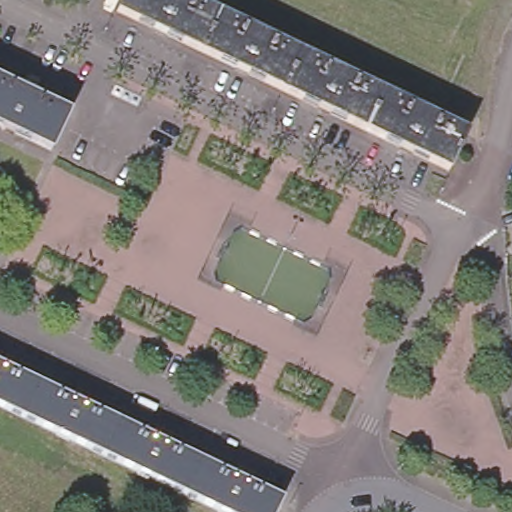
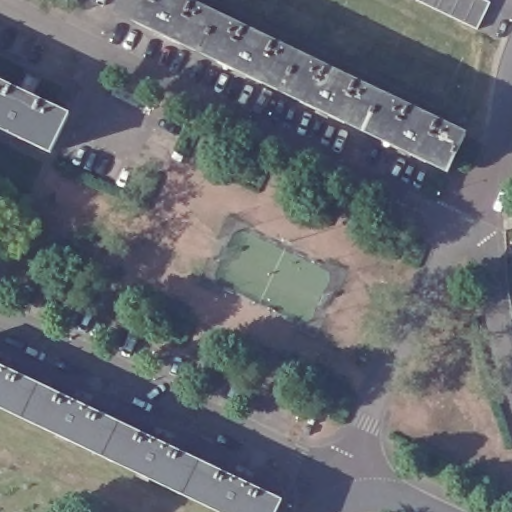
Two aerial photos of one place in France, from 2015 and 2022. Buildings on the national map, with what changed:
unchanged [(202,52),(121,14),(127,0),(188,0),(219,15),(202,52)]
new [(452,15),(438,9),(425,2),(420,0),(489,0),(492,1),(479,28),(465,21),(452,15)]
unchanged [(304,56),(288,94),(202,52),(219,15),(304,56)]
unchanged [(386,96),(369,133),(288,94),(304,56),(386,96)]
unchanged [(71,112),(64,127),(52,150),(0,125),(0,78),(71,112)]
unchanged [(369,133),(386,96),(464,133),(448,171),(369,133)]
unchanged [(9,360),(6,366),(38,382),(21,417),(0,407),(0,356),(9,360)]
unchanged [(102,456),(21,417),(38,382),(74,399),(77,392),(90,398),(87,405),(121,421),(102,456)]
unchanged [(121,421),(155,438),(158,431),(172,437),(168,444),(201,460),(183,495),(102,456),(121,421)]
unchanged [(218,512),(183,495),(201,460),(237,477),(241,470),(252,476),(249,482),(281,498),(274,512),(218,512)]

